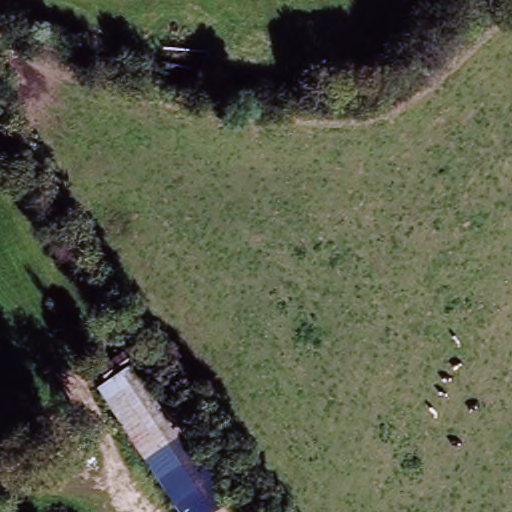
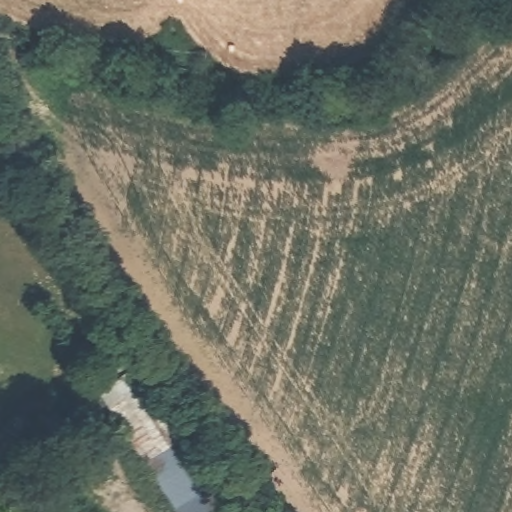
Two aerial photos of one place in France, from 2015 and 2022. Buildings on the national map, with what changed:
unchanged [(97,407),(84,387),(120,362),(133,382),(129,386),(97,407)]
unchanged [(217,502),(202,512),(175,512),(97,407),(129,386),(217,502)]

